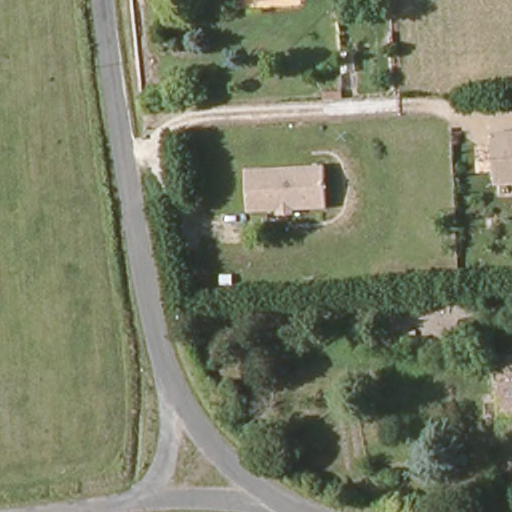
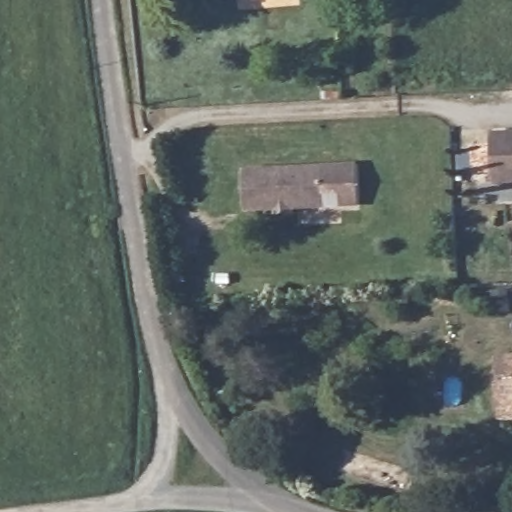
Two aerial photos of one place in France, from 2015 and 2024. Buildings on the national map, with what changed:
unchanged [(495,136),(512,135),(512,181),(495,182),(495,136)]
new [(358,164),(360,208),(327,209),(324,166),(358,164)]
unchanged [(327,209),(248,214),(244,170),(324,166),(327,209)]
unchanged [(500,383),(498,362),(510,361),(509,355),(512,355),(512,425),(503,425),(500,383)]

